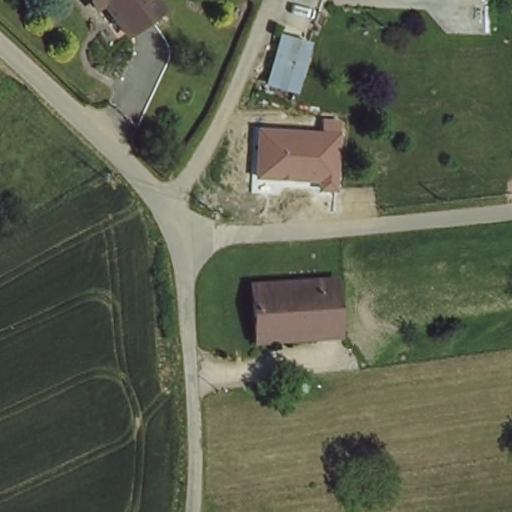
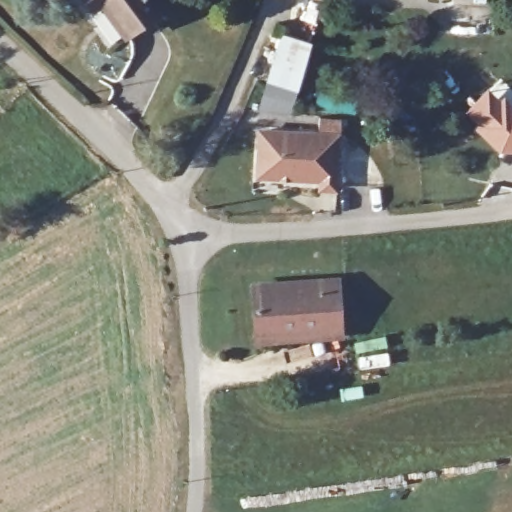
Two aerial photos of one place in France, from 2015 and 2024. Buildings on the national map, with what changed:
unchanged [(129,32),(107,5),(100,12),(89,0),(156,0),(160,5),(129,32)]
unchanged [(282,30),(311,37),(299,92),(267,82),(282,30)]
new [(491,86),(511,102),(512,103),(512,153),(497,154),(461,114),(491,86)]
unchanged [(339,120),(336,191),(319,190),(319,181),(255,179),(259,127),(322,131),(322,120),(339,120)]
unchanged [(253,330),(251,281),(341,276),(344,335),(325,335),(254,340),(253,330)]

